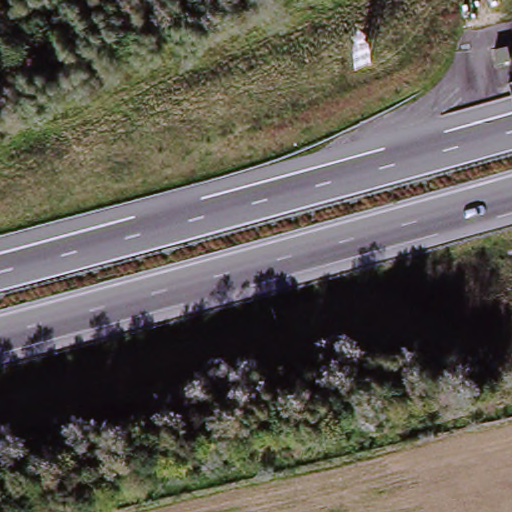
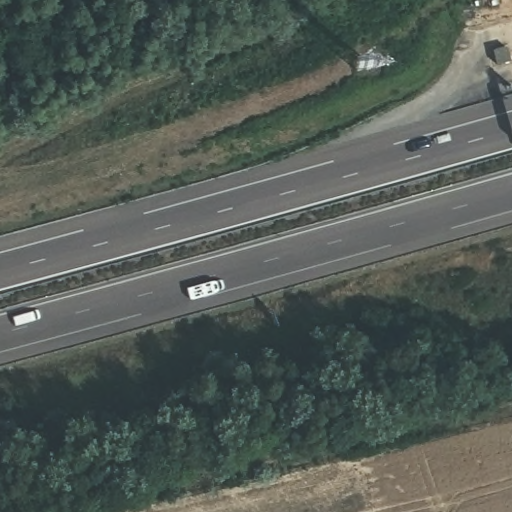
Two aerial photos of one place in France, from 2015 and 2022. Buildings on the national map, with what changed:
unchanged [(507,49),(509,60),(494,64),(492,54),(507,49)]

